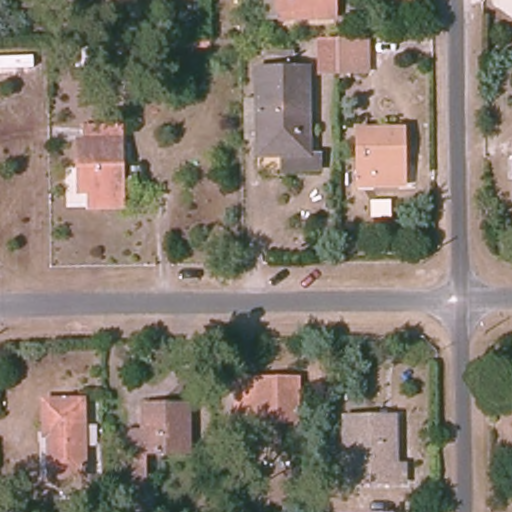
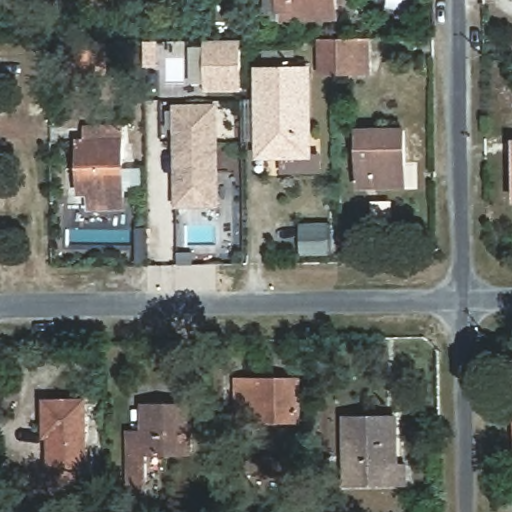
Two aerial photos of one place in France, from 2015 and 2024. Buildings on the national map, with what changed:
unchanged [(284,15),(263,15),(262,0),(283,0),(284,15)]
unchanged [(343,25),(315,25),(314,16),(284,15),(283,0),(343,0),(343,25)]
new [(242,41),(243,91),(207,91),(206,41),(242,41)]
unchanged [(336,42),(336,76),(320,76),(319,42),(336,42)]
unchanged [(339,42),(369,42),(369,76),(339,75),(339,42)]
unchanged [(309,72),(310,160),(262,160),(261,74),(309,72)]
new [(174,104),(219,104),(220,208),(175,208),(174,104)]
unchanged [(121,210),(90,209),(89,194),(79,195),(78,146),(87,145),(87,130),(121,130),(121,210)]
unchanged [(394,187),(355,186),(355,131),(399,131),(399,166),(400,187),(394,187)]
unchanged [(240,403),(239,378),(301,378),(302,420),(261,419),(240,419),(240,403)]
unchanged [(81,476),(49,476),(50,434),(44,433),(44,401),(81,402),(81,476)]
unchanged [(142,450),(143,509),(126,509),(126,429),(141,429),(141,404),(168,404),(186,404),(186,411),(187,450),(142,450)]
unchanged [(400,482),(390,481),(345,481),(345,415),(378,415),(390,414),(390,445),(390,463),(400,463),(400,482)]

